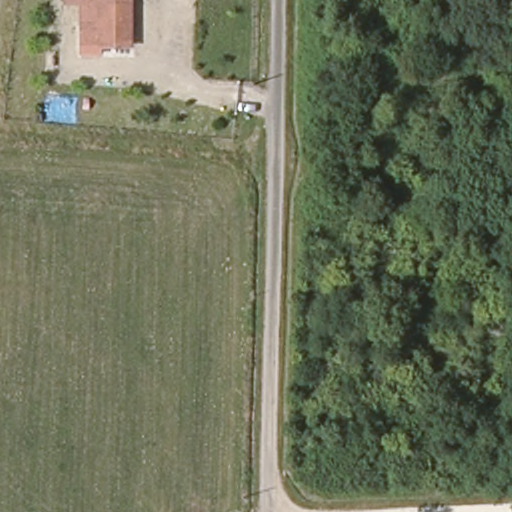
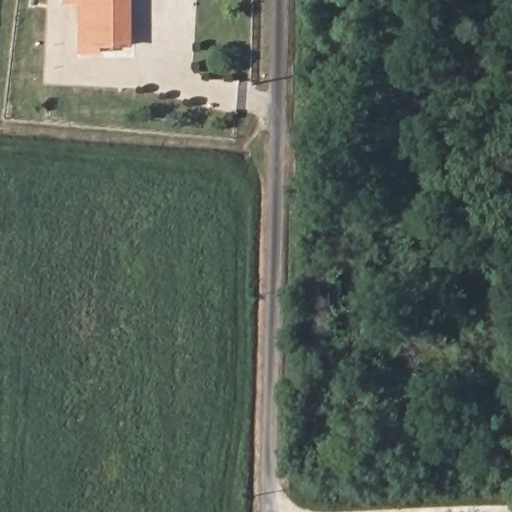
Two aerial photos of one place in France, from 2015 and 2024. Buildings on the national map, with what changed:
unchanged [(80,0),(134,0),(136,50),(81,51),(80,0)]

